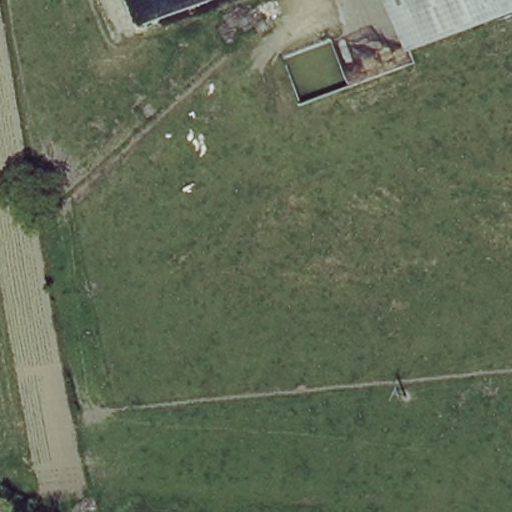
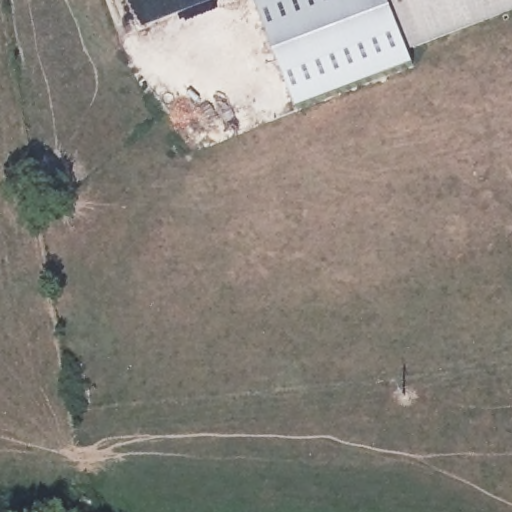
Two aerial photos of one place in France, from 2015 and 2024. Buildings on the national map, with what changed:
new [(414,65),(297,111),(255,0),(390,0),(409,54),(414,65)]
unchanged [(390,0),(512,0),(512,11),(409,54),(390,0)]

